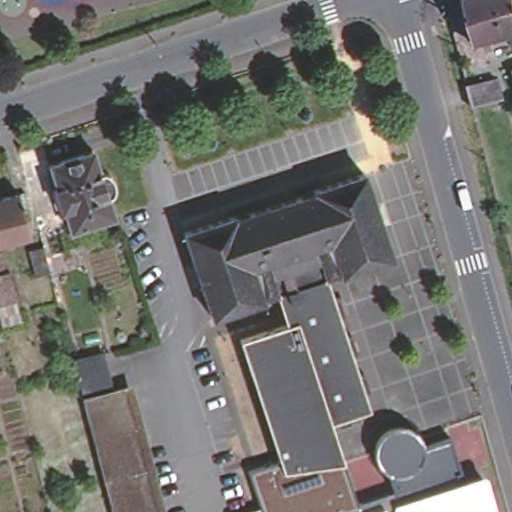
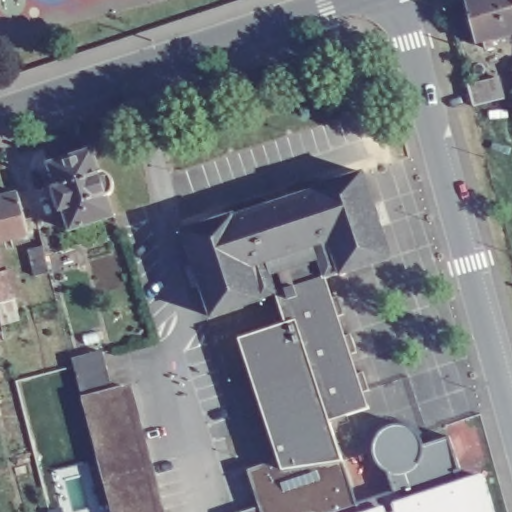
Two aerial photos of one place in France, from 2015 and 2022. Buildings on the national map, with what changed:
unchanged [(491,48),(482,50),(480,43),(473,45),(462,0),(512,0),(512,35),(489,41),(491,48)]
unchanged [(498,76),(505,102),(474,110),(468,85),(498,76)]
unchanged [(66,232),(61,214),(56,214),(48,189),(52,187),(45,166),(89,153),(96,173),(97,173),(98,174),(99,174),(100,174),(101,174),(103,175),(104,176),(105,177),(106,178),(107,179),(108,180),(108,182),(109,183),(109,184),(109,186),(109,188),(109,189),(109,190),(108,192),(108,193),(108,194),(107,195),(106,196),(105,198),(104,198),(110,219),(66,232)]
unchanged [(262,301),(263,304),(214,319),(207,298),(206,299),(191,256),(193,255),(186,233),(236,216),(237,219),(315,194),(314,192),(365,175),(372,197),(374,197),(387,239),(386,239),(393,260),(343,277),(342,275),(325,280),(315,249),(270,265),(279,295),(262,301)]
unchanged [(20,196),(30,238),(0,245),(0,201),(20,196)]
unchanged [(52,274),(38,279),(31,254),(45,249),(52,274)]
unchanged [(315,249),(325,280),(332,300),(339,298),(346,317),(338,319),(344,339),(352,336),(358,354),(350,357),(357,377),(364,374),(370,393),(363,395),(368,412),(331,424),(344,464),(283,472),(280,464),(240,340),(288,324),(279,295),(270,265),(315,249)]
unchanged [(1,255),(6,275),(10,274),(17,304),(6,306),(0,308),(0,255),(1,255)]
unchanged [(73,378),(71,369),(70,366),(100,355),(104,370),(109,393),(122,389),(153,512),(108,512),(79,400),(73,378)]
unchanged [(261,504),(251,473),(280,464),(283,472),(344,464),(355,505),(393,492),(387,472),(375,461),(374,449),(377,438),(384,430),(393,427),(404,428),(413,431),(420,438),(424,446),(450,439),(463,481),(485,474),(496,512),(241,512),(261,504)]

